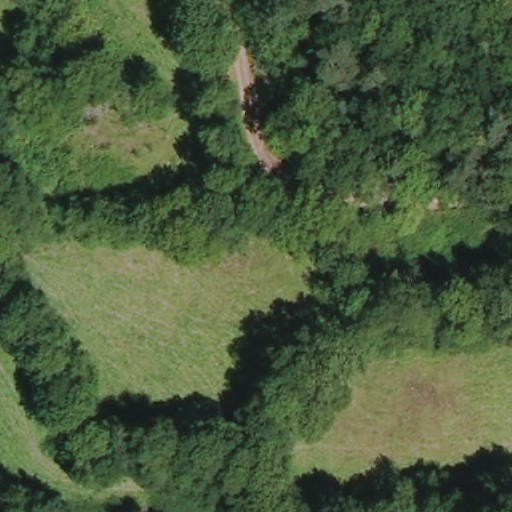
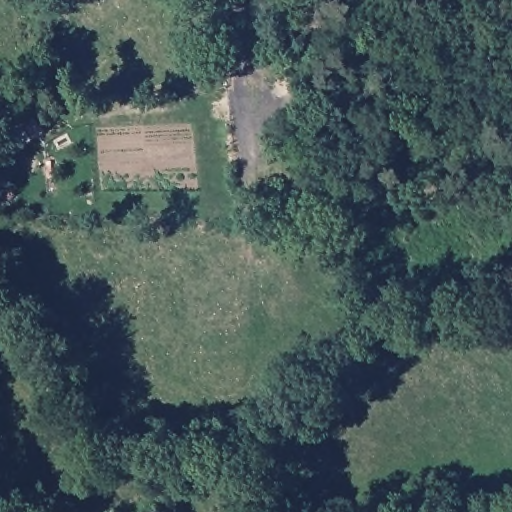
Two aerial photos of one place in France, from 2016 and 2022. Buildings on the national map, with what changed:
[]

